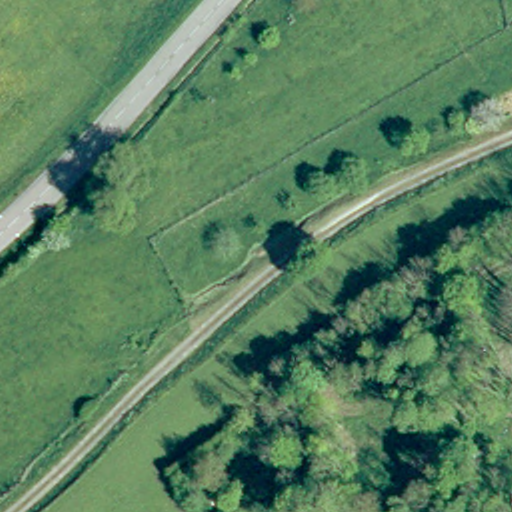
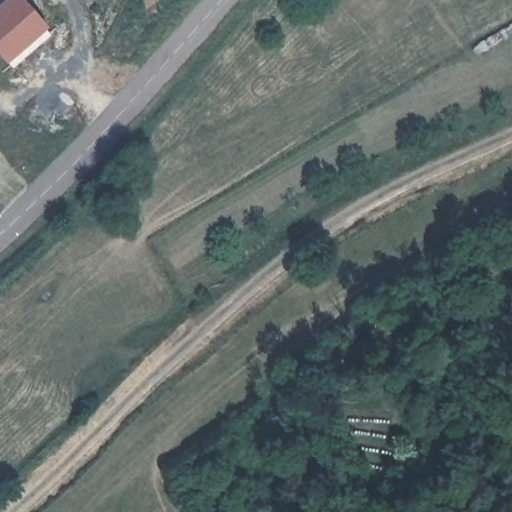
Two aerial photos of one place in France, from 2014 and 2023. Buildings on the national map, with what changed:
new [(48,27),(6,65),(0,57),(0,0),(23,0),(48,27)]

